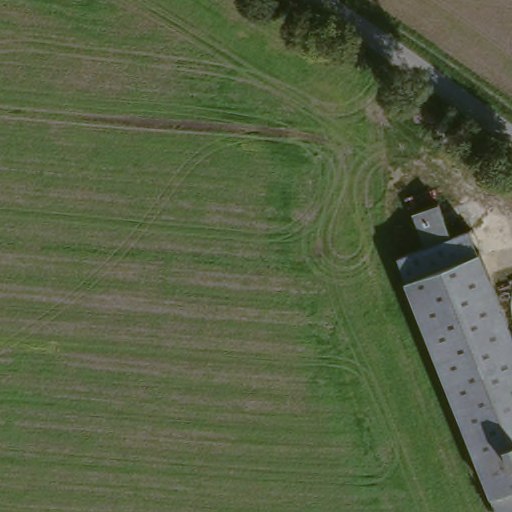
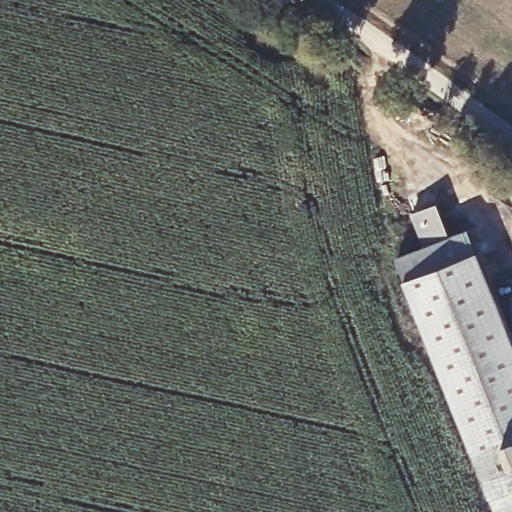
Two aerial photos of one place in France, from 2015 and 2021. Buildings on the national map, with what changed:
unchanged [(490,503),(396,261),(471,232),(512,342),(512,494),(490,503)]
unchanged [(512,497),(512,512),(495,512),(492,504),(512,497)]

